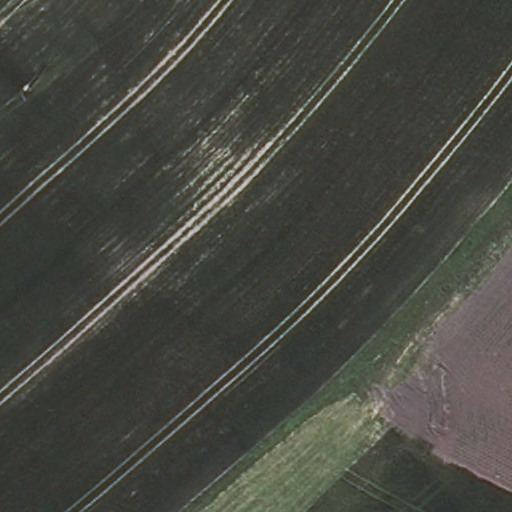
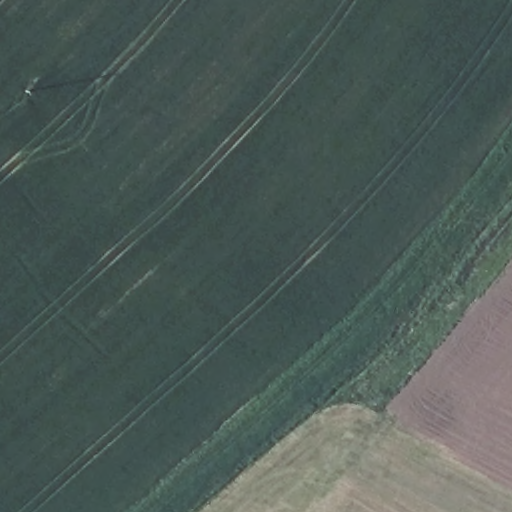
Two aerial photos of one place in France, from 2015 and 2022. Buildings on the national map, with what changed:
[]

